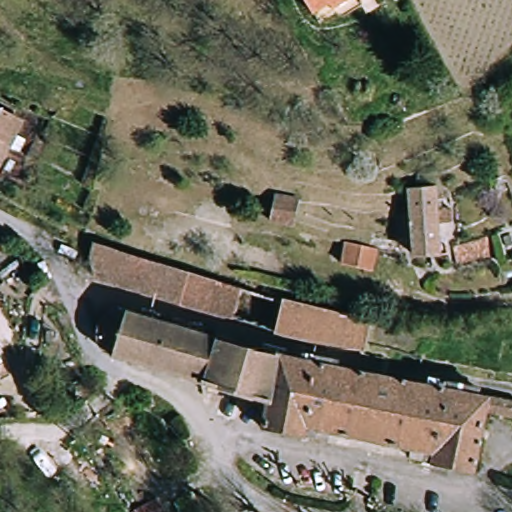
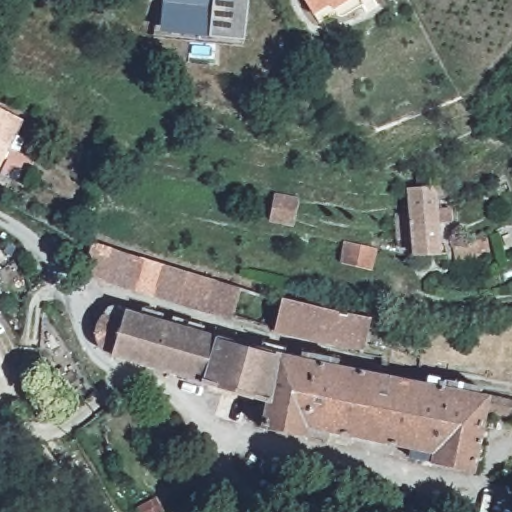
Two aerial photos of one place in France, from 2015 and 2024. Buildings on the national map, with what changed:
new [(242,41),(208,38),(157,34),(161,0),(247,0),(242,41)]
unchanged [(325,12),(321,4),(307,10),(302,0),(350,0),(325,12)]
unchanged [(0,146),(0,107),(22,119),(7,150),(0,146)]
unchanged [(0,164),(0,146),(7,150),(0,164)]
unchanged [(23,182),(7,175),(14,156),(32,164),(23,182)]
unchanged [(301,194),(293,222),(269,217),(277,189),(301,194)]
unchanged [(443,194),(444,254),(420,255),(419,235),(406,235),(405,211),(417,211),(416,193),(443,194)]
unchanged [(495,250),(465,257),(459,242),(489,234),(495,250)]
unchanged [(95,280),(90,240),(246,288),(236,320),(95,280)]
unchanged [(375,271),(343,265),(344,240),(380,249),(375,271)]
unchanged [(17,281),(0,293),(0,254),(17,281)]
unchanged [(366,351),(281,331),(285,296),(377,316),(366,351)]
unchanged [(512,412),(487,407),(472,467),(433,460),(435,446),(313,420),(308,436),(265,426),(264,399),(112,355),(124,310),(289,356),(512,397),(512,412)]
unchanged [(2,343),(0,345),(0,339),(2,343)]

